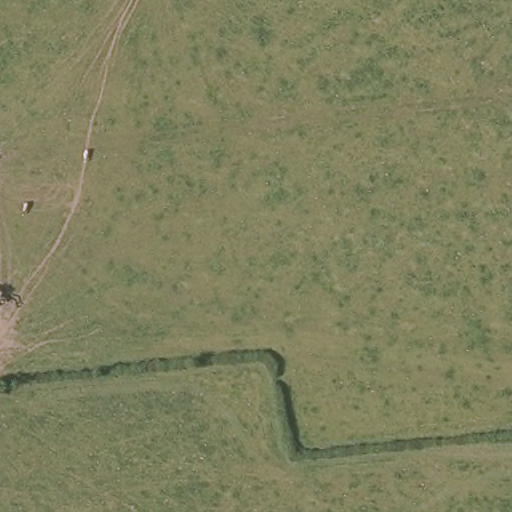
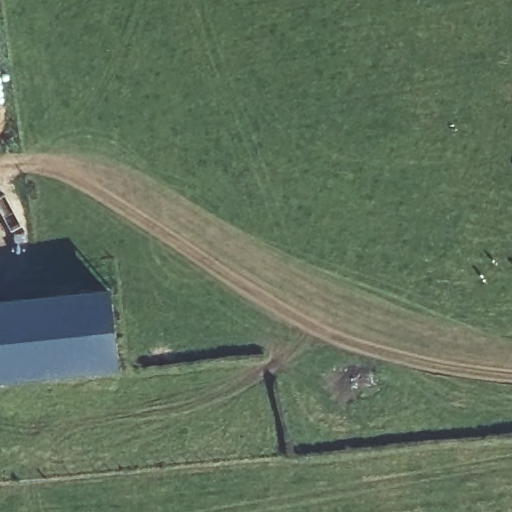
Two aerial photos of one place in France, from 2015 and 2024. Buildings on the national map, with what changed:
new [(112,288),(122,370),(0,383),(0,301),(112,288)]

